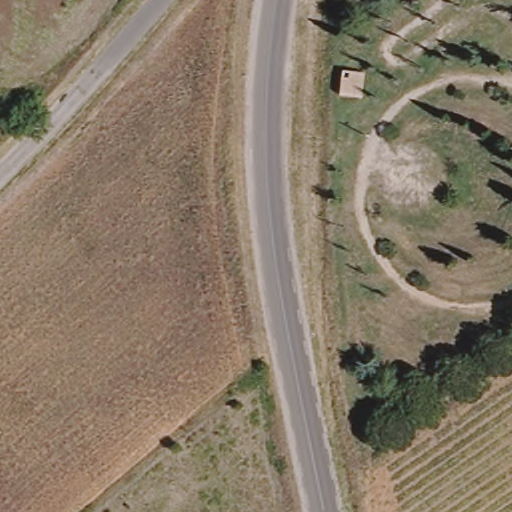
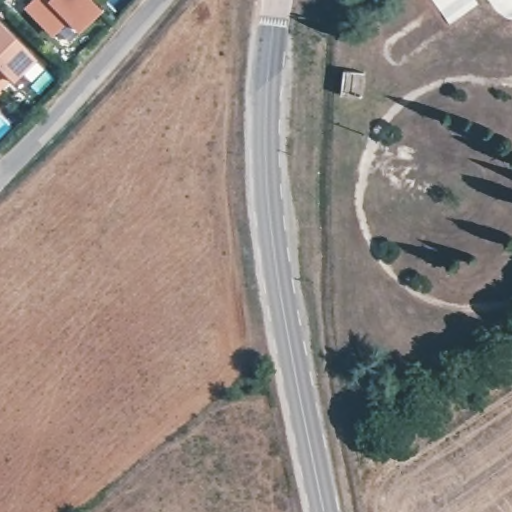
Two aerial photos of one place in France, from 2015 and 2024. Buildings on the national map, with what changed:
new [(87,2),(99,14),(79,35),(63,22),(54,34),(24,8),(31,0),(88,0),(87,2)]
new [(14,84),(11,81),(0,91),(0,26),(37,61),(14,84)]
unchanged [(338,97),(341,71),(364,73),(360,99),(338,97)]

